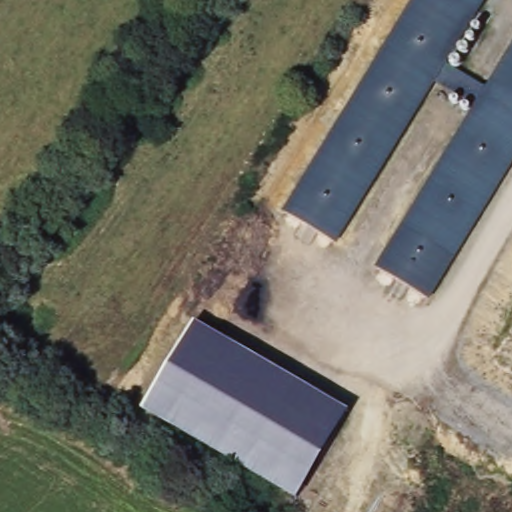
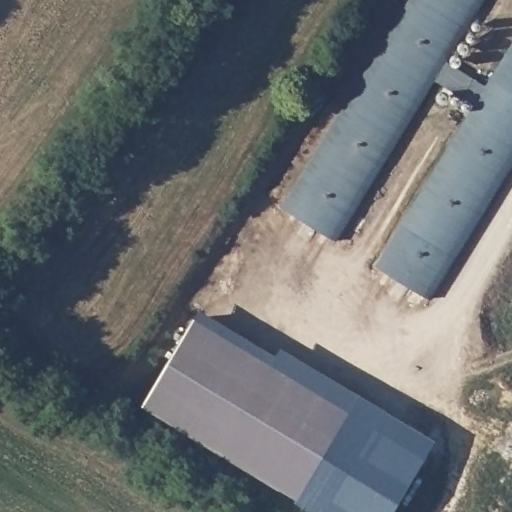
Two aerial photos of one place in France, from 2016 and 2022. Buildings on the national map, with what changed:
unchanged [(453,59),(500,87),(512,66),(512,193),(445,303),(389,270),(488,105),(441,78),(342,241),(287,207),(414,0),(489,0),(453,59)]
new [(348,412),(194,318),(200,310),(276,355),(281,347),(434,438),(391,512),(315,512),(295,500),(296,497),(311,473),(348,412)]
unchanged [(194,318),(348,412),(296,497),(141,403),(194,318)]

